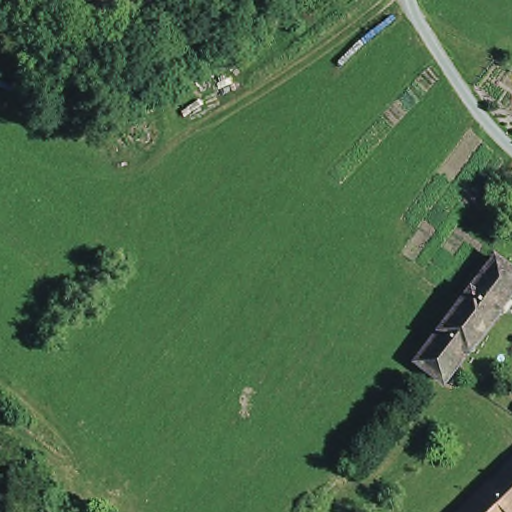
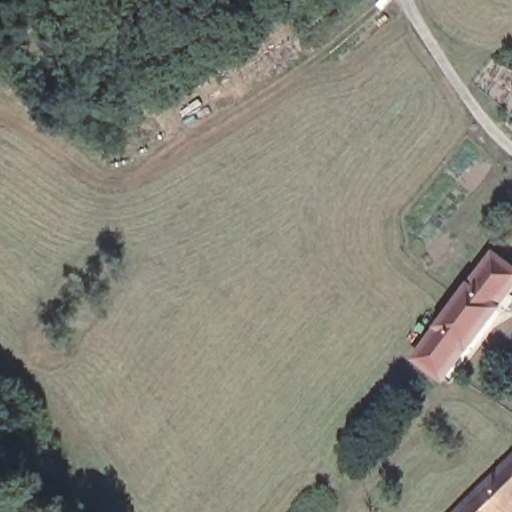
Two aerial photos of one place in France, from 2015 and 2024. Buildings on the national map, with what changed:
unchanged [(512,274),(512,284),(504,295),(508,298),(497,312),(495,311),(465,351),(463,350),(446,372),(440,380),(411,359),(419,350),(491,257),(512,274)]
unchanged [(472,500),(482,488),(512,460),(512,512),(458,512),(461,510),(472,500)]

